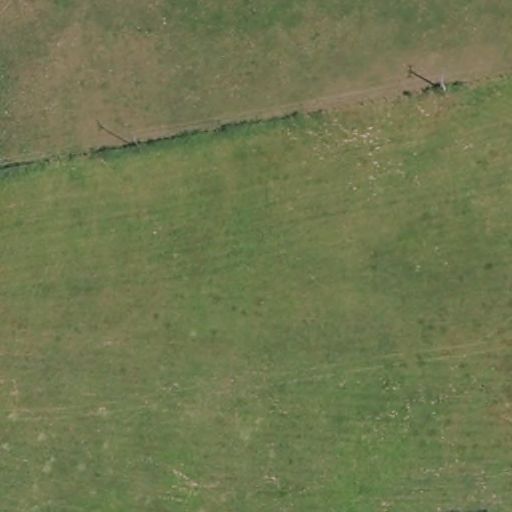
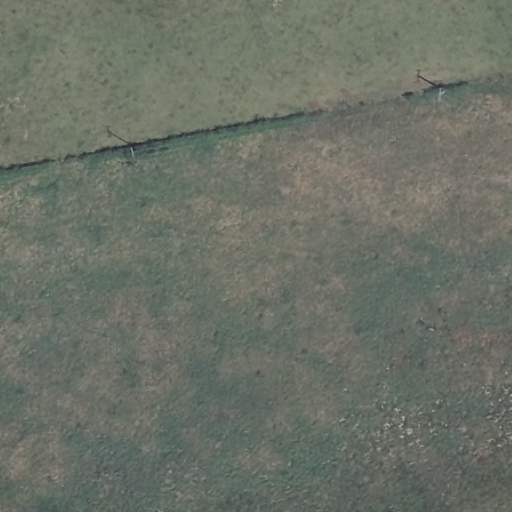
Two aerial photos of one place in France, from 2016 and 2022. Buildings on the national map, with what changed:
[]

